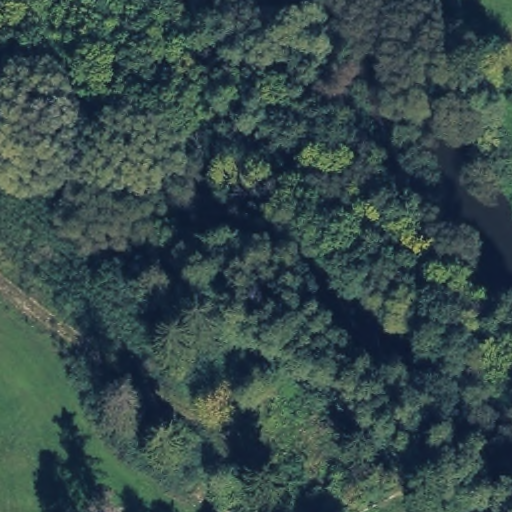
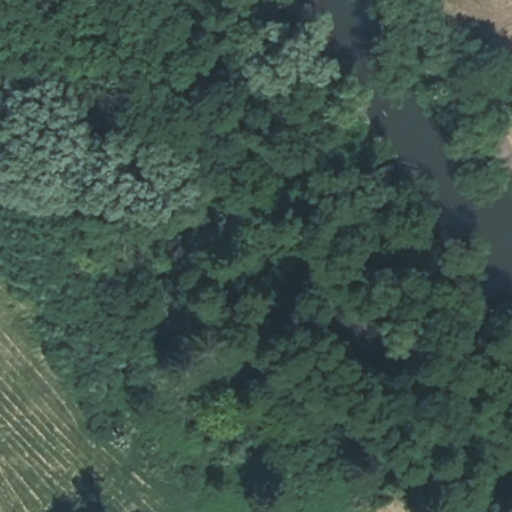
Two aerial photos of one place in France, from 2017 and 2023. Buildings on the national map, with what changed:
[]

